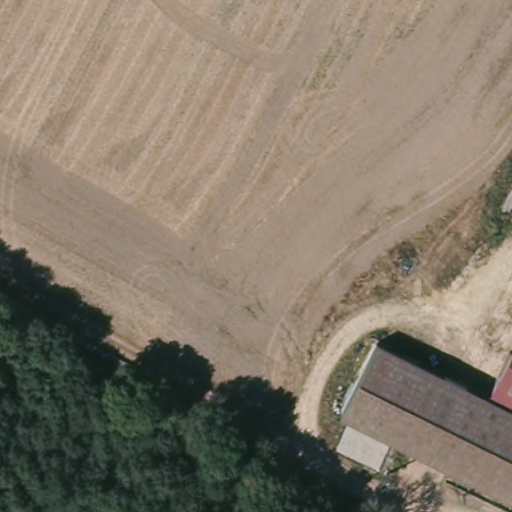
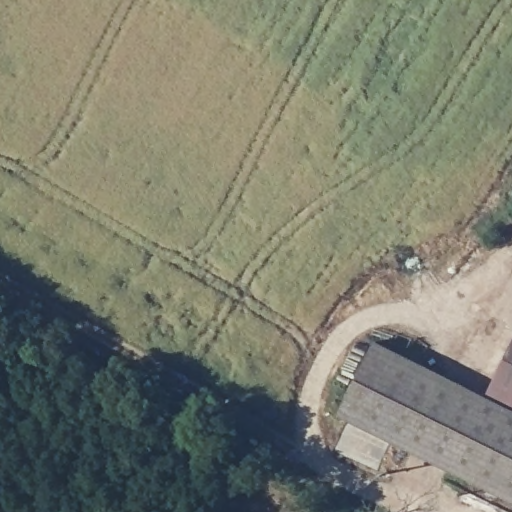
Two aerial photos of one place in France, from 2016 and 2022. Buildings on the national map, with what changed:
unchanged [(402,432),(345,402),(383,336),(440,367),(402,432)]
unchanged [(491,396),(512,358),(512,406),(491,396)]
unchanged [(402,432),(440,367),(491,396),(512,406),(512,491),(402,432)]

